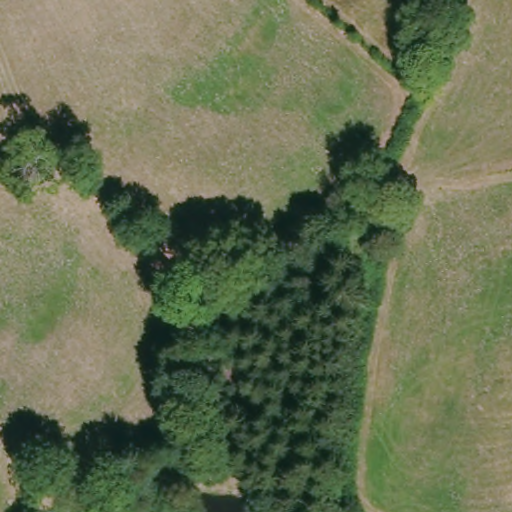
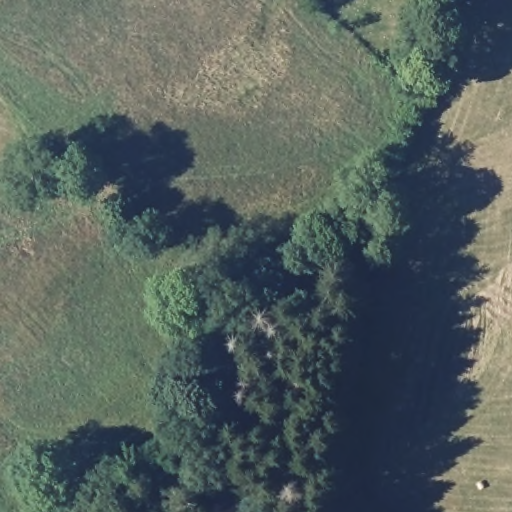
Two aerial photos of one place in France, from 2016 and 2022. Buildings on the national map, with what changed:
[]

